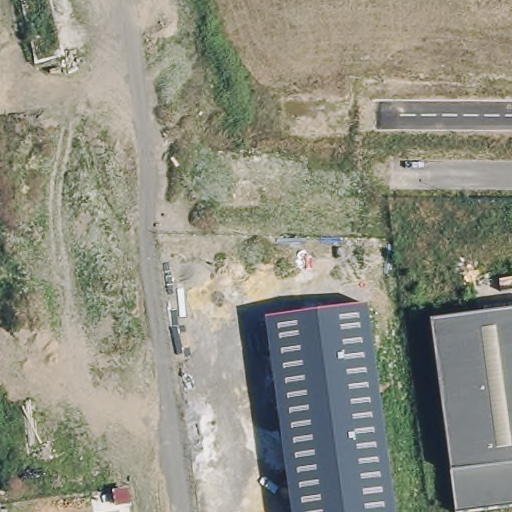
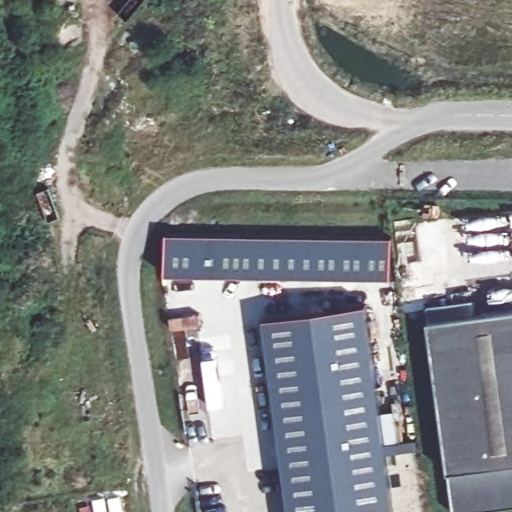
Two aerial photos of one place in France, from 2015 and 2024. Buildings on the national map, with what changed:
new [(165,275),(166,235),(394,238),(392,278),(165,275)]
unchanged [(395,512),(290,512),(267,320),(367,304),(395,512)]
unchanged [(512,307),(512,505),(463,512),(460,512),(434,318),(512,307)]

